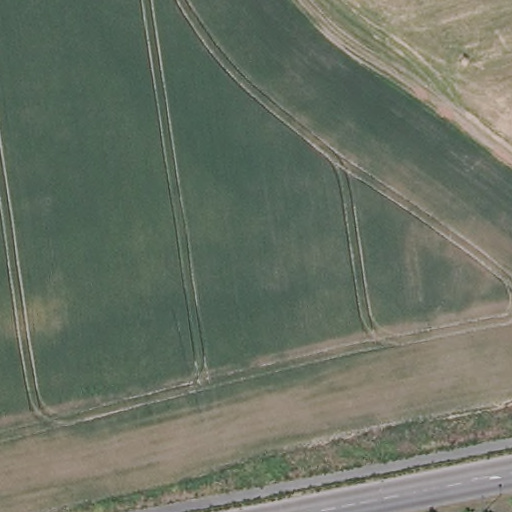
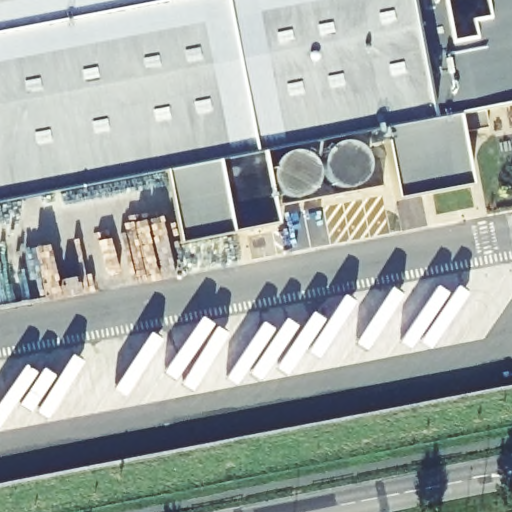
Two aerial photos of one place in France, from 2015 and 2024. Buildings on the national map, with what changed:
new [(512,0),(512,106),(457,116),(471,187),(396,201),(383,130),(262,153),(276,225),(178,243),(165,172),(0,203),(0,0),(512,0)]

